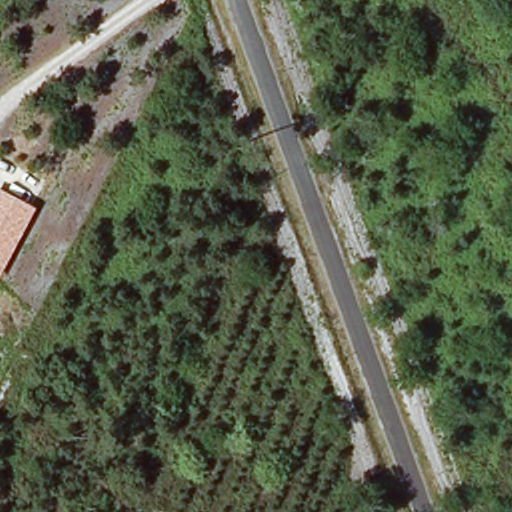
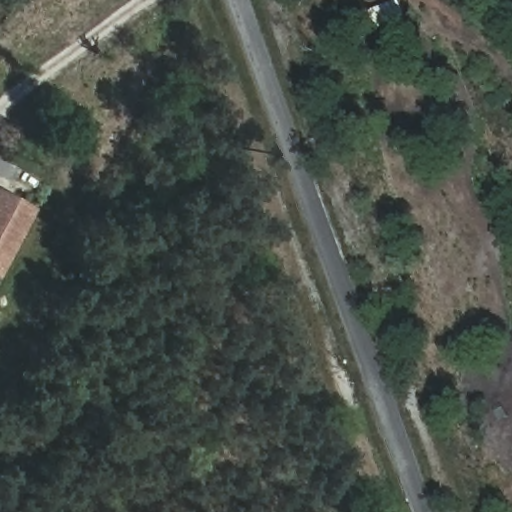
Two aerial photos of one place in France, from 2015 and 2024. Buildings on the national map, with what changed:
unchanged [(0,272),(0,193),(33,210),(0,272)]

